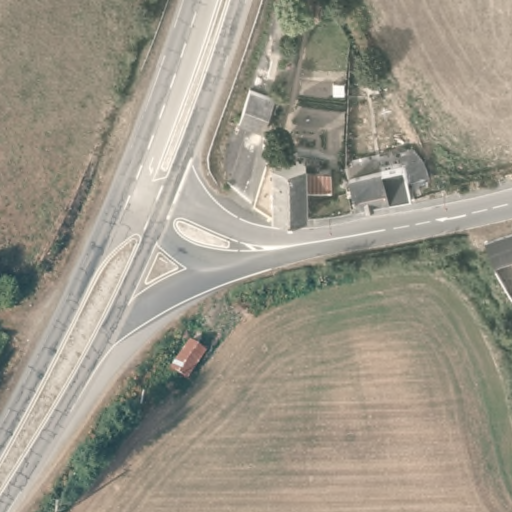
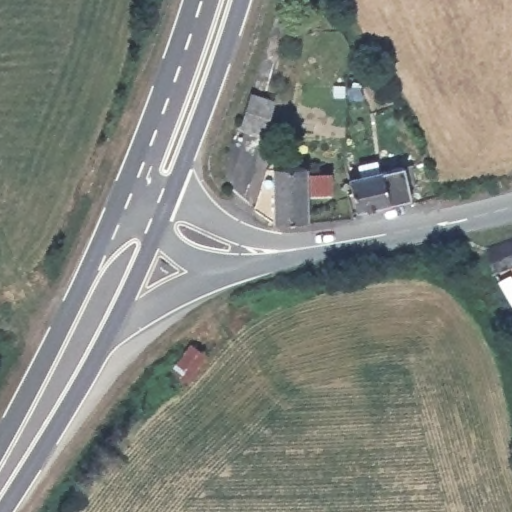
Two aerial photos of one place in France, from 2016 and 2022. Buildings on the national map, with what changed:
unchanged [(260,128),(239,122),(249,86),(269,92),(260,128)]
unchanged [(401,197),(349,200),(346,173),(401,166),(399,152),(410,151),(422,165),(431,191),(401,197)]
unchanged [(329,189),(303,192),(304,204),(278,208),(274,170),(326,162),(329,189)]
unchanged [(485,241),(512,232),(512,262),(494,268),(485,241)]
unchanged [(170,367),(188,337),(207,350),(191,379),(170,367)]

